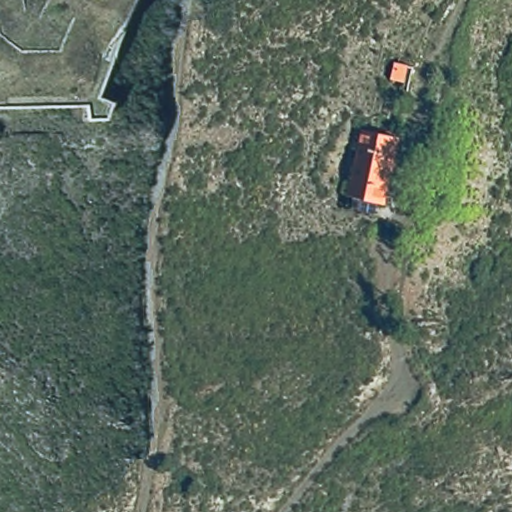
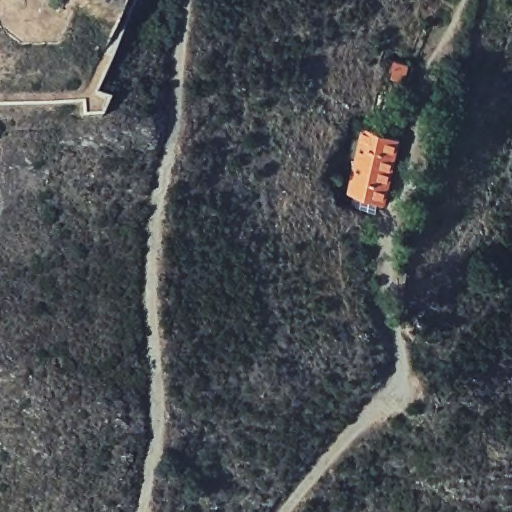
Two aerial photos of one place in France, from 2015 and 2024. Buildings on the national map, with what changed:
unchanged [(95,101),(105,105),(101,121),(80,121),(80,106),(0,108),(0,0),(133,0),(95,101)]
unchanged [(365,131),(402,146),(382,208),(346,195),(365,131)]

